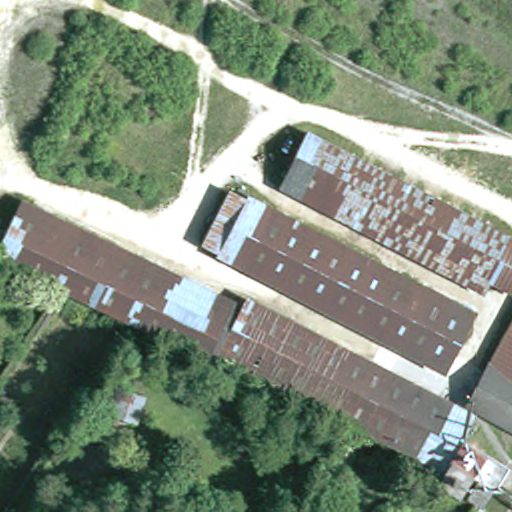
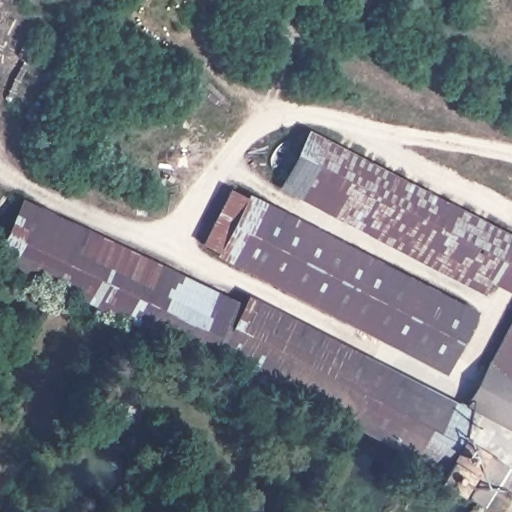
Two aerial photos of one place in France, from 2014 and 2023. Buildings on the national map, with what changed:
unchanged [(492,303),(288,197),(311,152),(318,139),(512,240),(512,296),(500,290),(492,303)]
unchanged [(221,251),(205,243),(234,187),(249,195),(221,251)]
unchanged [(251,192),(267,200),(247,267),(219,253),(221,251),(249,195),(251,192)]
unchanged [(267,200),(481,310),(448,372),(247,267),(267,200)]
unchanged [(224,362),(220,361),(216,367),(72,299),(25,276),(2,264),(20,226),(30,206),(243,307),(252,312),(254,307),(399,382),(370,438),(226,363),(224,362)]
unchanged [(0,263),(0,216),(20,226),(2,264),(0,263)]
unchanged [(512,348),(512,433),(477,414),(512,348)]
unchanged [(479,423),(467,446),(512,472),(512,482),(493,512),(485,512),(446,488),(450,481),(450,479),(420,463),(388,447),(370,438),(399,382),(479,423)]

